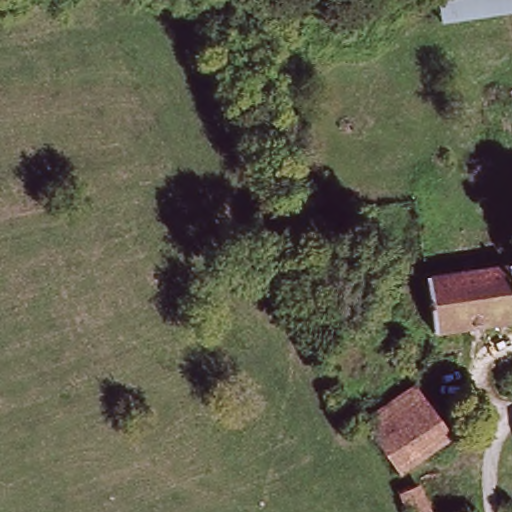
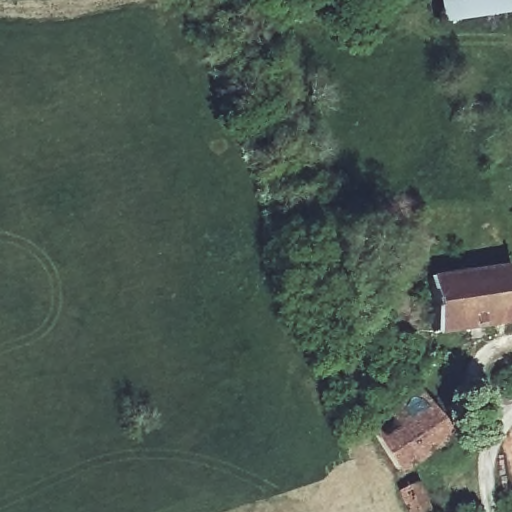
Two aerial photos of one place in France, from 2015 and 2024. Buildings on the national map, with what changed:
unchanged [(452,26),(446,0),(512,0),(512,17),(452,26)]
unchanged [(512,278),(512,325),(505,326),(507,334),(478,341),(476,333),(445,340),(437,307),(436,294),(436,293),(447,293),(445,279),(505,268),(508,278),(512,278)]
unchanged [(408,395),(430,382),(459,431),(436,445),(408,395)]
unchanged [(382,409),(408,395),(436,445),(408,459),(382,409)]
unchanged [(473,494),(480,512),(416,512),(407,489),(424,481),(440,510),(473,494)]

